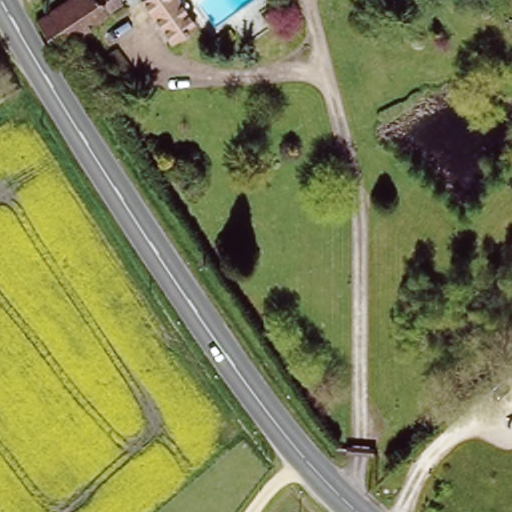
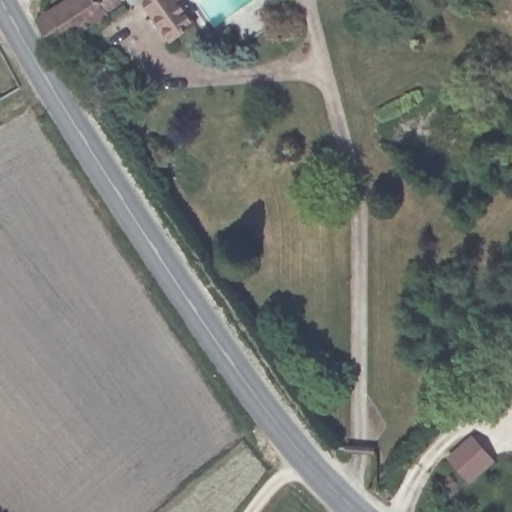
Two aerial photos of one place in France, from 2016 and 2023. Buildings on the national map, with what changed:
unchanged [(55,46),(50,39),(36,17),(45,12),(63,0),(121,0),(122,1),(108,10),(60,43),(55,46)]
unchanged [(193,20),(170,35),(147,0),(180,0),(193,20)]
new [(471,438),(492,460),(469,481),(449,459),(471,438)]

